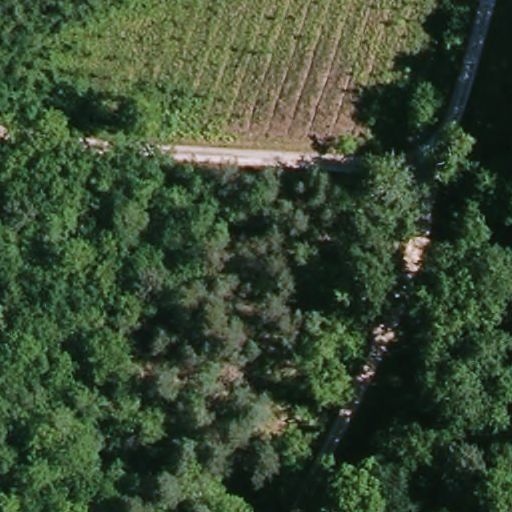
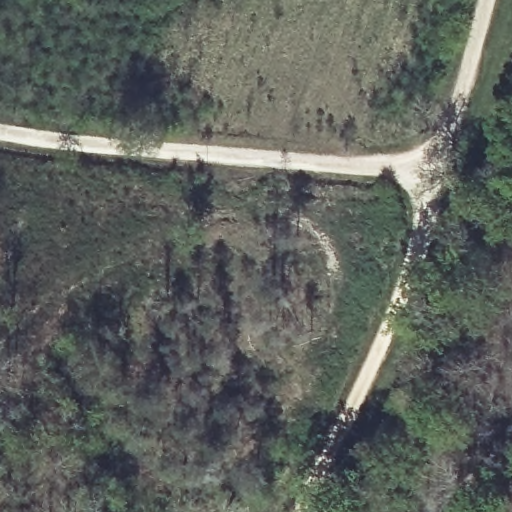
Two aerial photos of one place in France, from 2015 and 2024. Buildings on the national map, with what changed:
[]

